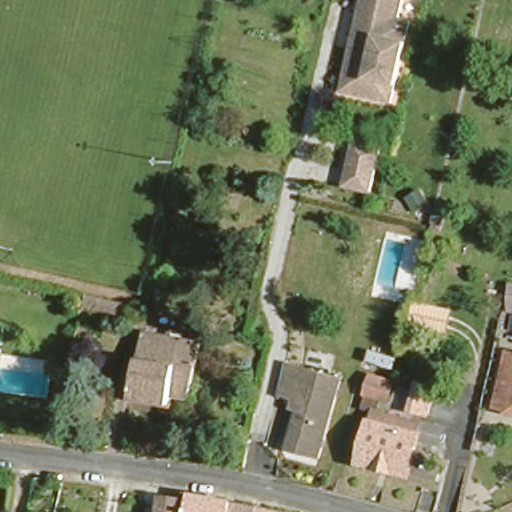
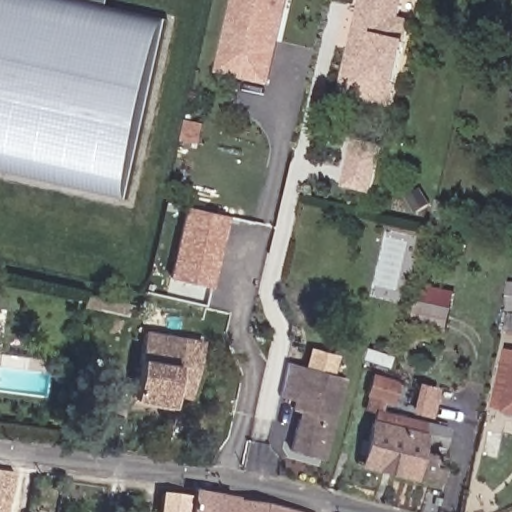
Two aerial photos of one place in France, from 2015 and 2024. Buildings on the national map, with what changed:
new [(163,19),(123,196),(0,168),(0,0),(96,0),(96,3),(163,19)]
new [(263,78),(215,67),(231,0),(270,0),(270,2),(279,5),(263,78)]
unchanged [(357,0),(398,0),(395,13),(406,16),(385,98),(336,84),(357,0)]
unchanged [(343,139),(369,146),(366,161),(358,192),(332,185),(340,154),(343,139)]
new [(207,284),(167,275),(184,204),(223,213),(207,284)]
unchanged [(8,282),(0,281),(0,267),(10,269),(8,282)]
unchanged [(130,308),(128,319),(83,309),(85,299),(118,306),(130,308)]
unchanged [(162,392),(158,405),(126,397),(144,328),(160,333),(165,317),(201,326),(181,396),(162,392)]
unchanged [(337,377),(316,459),(287,451),(297,412),(290,410),(292,401),(277,397),(286,363),(337,377)]
unchanged [(409,381),(405,398),(369,390),(373,373),(409,381)]
unchanged [(512,380),(512,403),(507,401),(512,380)]
unchanged [(366,456),(374,414),(419,423),(411,465),(366,456)]
unchanged [(418,469),(443,475),(435,507),(410,501),(418,469)]
new [(14,474),(5,512),(0,512),(0,472),(14,474)]
unchanged [(177,512),(160,512),(167,473),(183,475),(177,512)]
unchanged [(189,476),(233,487),(229,512),(225,512),(185,506),(189,476)]
unchanged [(329,512),(229,512),(233,487),(330,510),(329,512)]
unchanged [(225,512),(184,512),(185,506),(225,512)]

